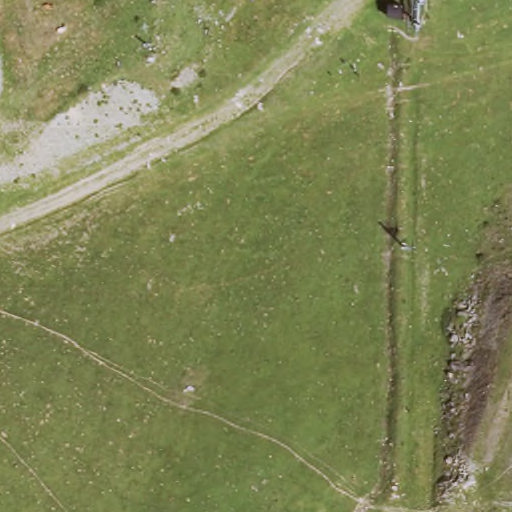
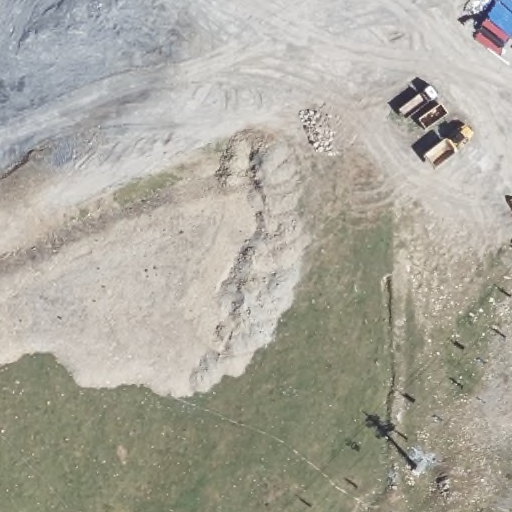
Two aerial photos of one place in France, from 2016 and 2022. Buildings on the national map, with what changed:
[]

